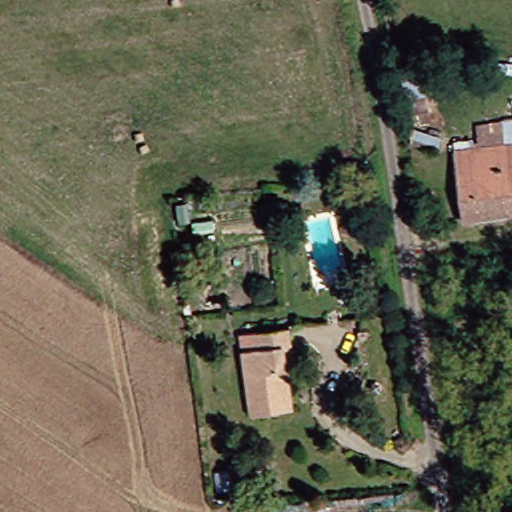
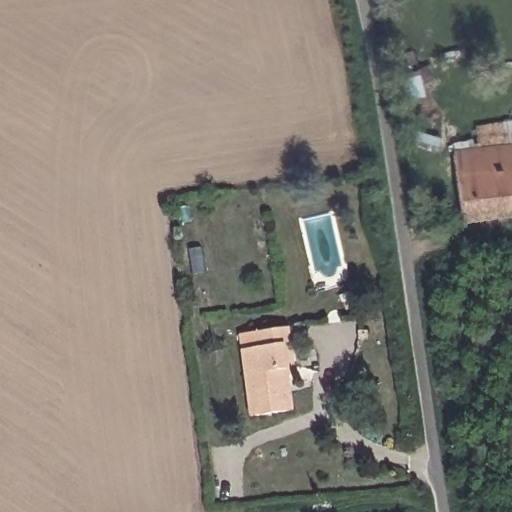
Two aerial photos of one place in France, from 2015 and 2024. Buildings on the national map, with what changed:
unchanged [(467,122),(510,115),(512,131),(512,210),(452,216),(445,146),(469,144),(467,122)]
unchanged [(286,343),(290,372),(283,373),(287,406),(245,412),(236,346),(252,344),(250,328),(284,323),(286,343)]

